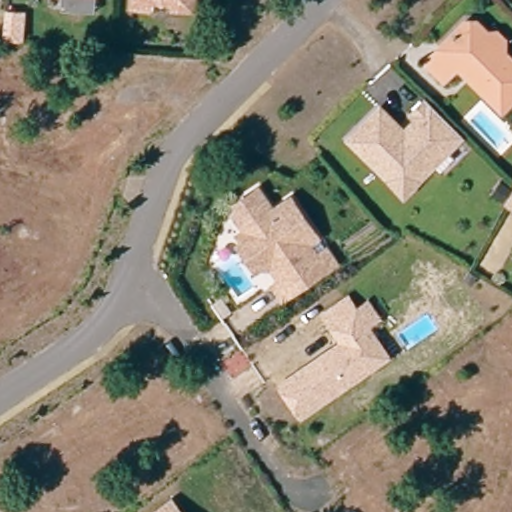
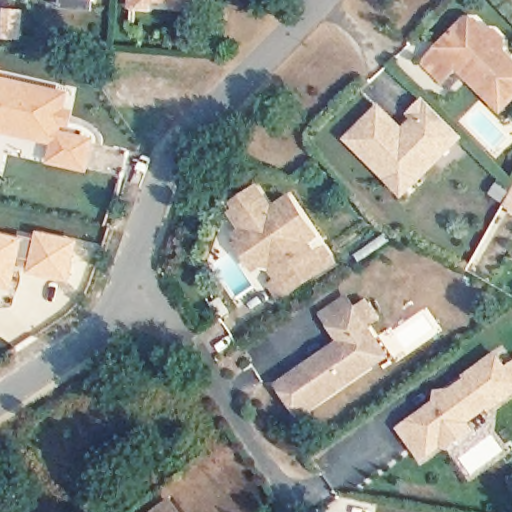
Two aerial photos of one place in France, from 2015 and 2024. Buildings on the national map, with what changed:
unchanged [(58,0),(91,0),(91,5),(58,2),(58,0)]
unchanged [(150,7),(133,5),(133,0),(150,0),(150,7)]
unchanged [(195,9),(175,7),(176,0),(171,0),(195,0),(195,9)]
unchanged [(478,26),(482,22),(497,36),(491,42),(512,63),(512,88),(494,106),(450,63),(436,78),(416,59),(457,16),(468,16),(478,26)]
unchanged [(113,79),(102,78),(103,59),(115,59),(113,79)]
new [(51,145),(2,133),(0,143),(0,66),(4,67),(3,77),(71,91),(68,109),(76,110),(71,129),(65,128),(63,131),(96,139),(89,172),(48,164),(51,145)]
unchanged [(368,158),(340,131),(372,99),(396,123),(408,111),(403,106),(418,91),(437,110),(455,128),(418,165),(396,187),(368,158)]
unchanged [(502,206),(511,189),(512,188),(512,212),(502,206)]
unchanged [(327,250),(337,264),(284,300),(274,286),(282,281),(273,269),(263,267),(256,271),(240,247),(246,242),(241,235),(246,231),(235,215),(241,211),(237,205),(260,189),(275,211),(293,199),(319,238),(318,239),(326,251),(327,250)]
new [(21,235),(39,240),(40,235),(77,243),(70,280),(16,268),(11,286),(0,284),(0,237),(20,242),(21,235)]
unchanged [(319,355),(334,345),(342,339),(332,324),(323,312),(348,295),(356,308),(367,300),(379,317),(368,324),(377,337),(388,354),(374,363),(301,414),(280,382),(319,355)]
new [(451,450),(447,445),(423,462),(401,432),(469,382),(467,379),(496,358),(508,373),(512,370),(512,397),(493,411),(492,411),(496,417),(451,450)]
unchanged [(180,512),(165,512),(175,505),(180,512)]

